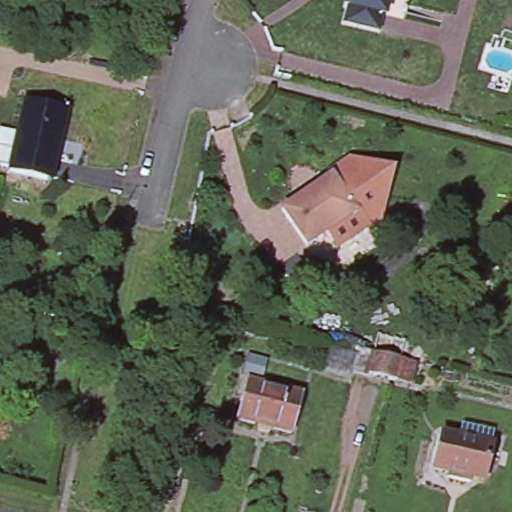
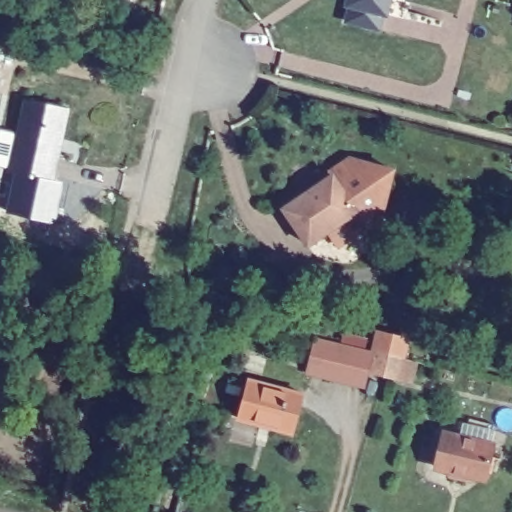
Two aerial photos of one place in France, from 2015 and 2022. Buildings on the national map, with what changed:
unchanged [(379,14),(376,13),(372,28),(340,20),(344,5),(340,4),(341,0),(382,0),(379,14)]
unchanged [(1,126),(12,128),(20,95),(62,104),(53,144),(49,144),(42,176),(4,168),(5,163),(0,162),(0,119),(2,119),(1,126)]
unchanged [(328,172),(347,159),(391,169),(377,223),(368,230),(366,226),(337,246),(327,231),(306,245),(282,208),(307,191),(308,193),(314,189),(312,187),(331,175),(328,172)]
new [(386,376),(374,374),(369,373),(365,387),(305,373),(315,337),(371,350),(376,330),(411,338),(407,358),(401,379),(386,376)]
demolished [(401,379),(386,376),(374,374),(377,351),(391,354),(407,358),(401,379)]
unchanged [(242,379),(297,392),(287,432),(232,419),(242,379)]
unchanged [(442,424),(491,435),(484,469),(435,458),(442,424)]

